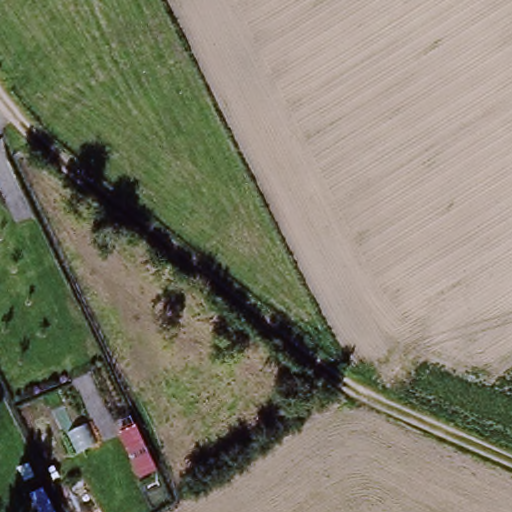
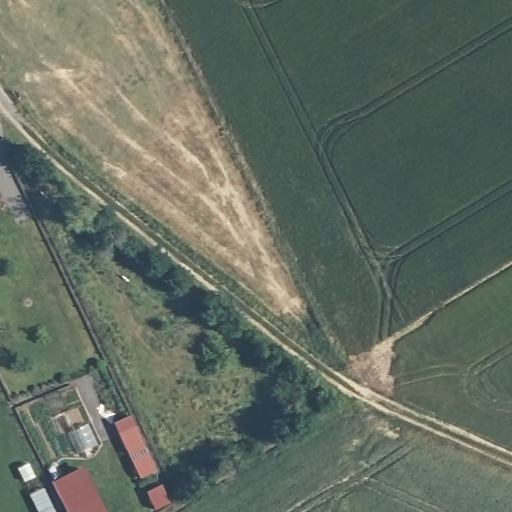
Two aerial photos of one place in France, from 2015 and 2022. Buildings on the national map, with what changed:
unchanged [(118,434),(136,426),(157,471),(138,479),(118,434)]
new [(83,467),(107,512),(67,512),(52,486),(83,467)]
unchanged [(32,494),(42,488),(54,512),(39,512),(32,494)]

